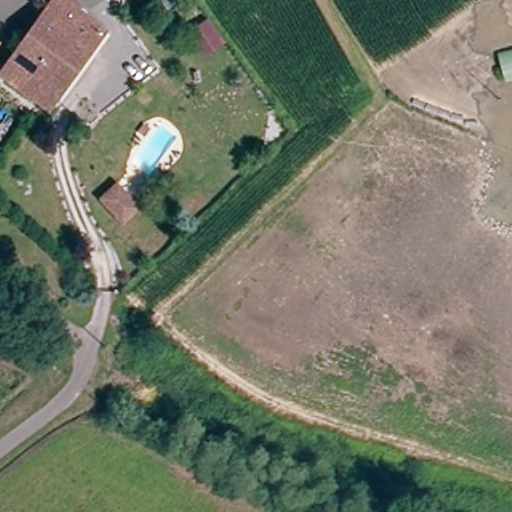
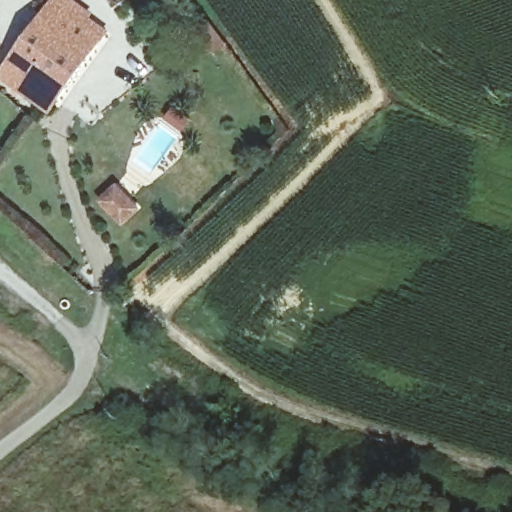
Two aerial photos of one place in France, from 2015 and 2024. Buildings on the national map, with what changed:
unchanged [(6,72),(55,0),(64,0),(106,30),(61,97),(55,104),(6,72)]
unchanged [(158,208),(144,222),(124,199),(139,186),(158,208)]

